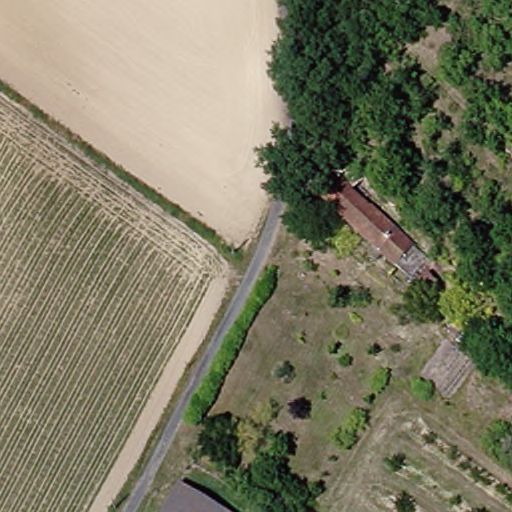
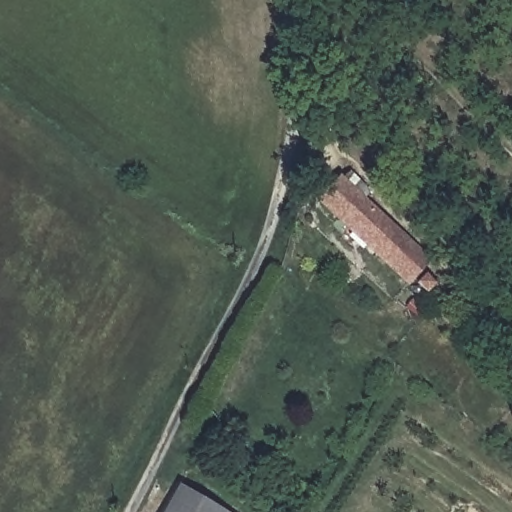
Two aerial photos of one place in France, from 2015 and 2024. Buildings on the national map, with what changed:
unchanged [(315,199),(334,178),(323,170),(333,158),(356,178),(349,190),(410,244),(386,267),(315,199)]
unchanged [(437,274),(427,290),(414,282),(424,266),(437,274)]
unchanged [(158,512),(174,485),(217,512),(158,512)]

